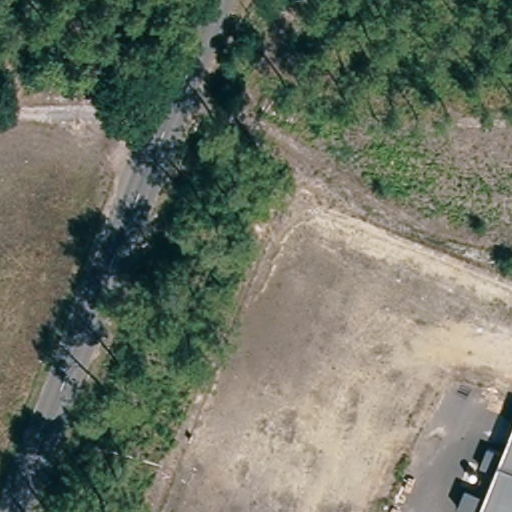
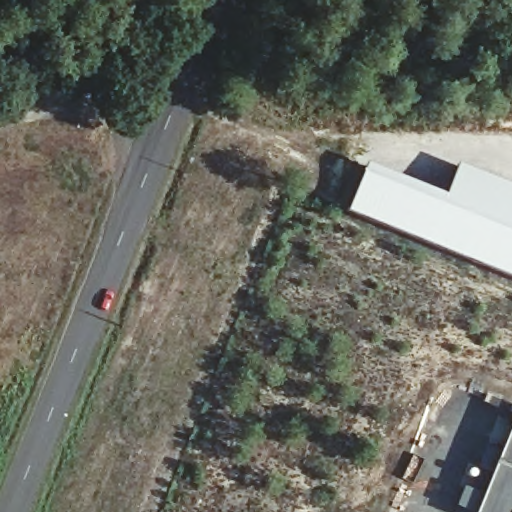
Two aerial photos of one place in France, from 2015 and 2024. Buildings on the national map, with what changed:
new [(366,163),(445,193),(457,163),(512,184),(512,278),(346,211),(366,163)]
unchanged [(466,512),(456,508),(463,488),(482,495),(492,472),(480,467),(487,448),(500,452),(512,422),(512,512),(466,512)]

